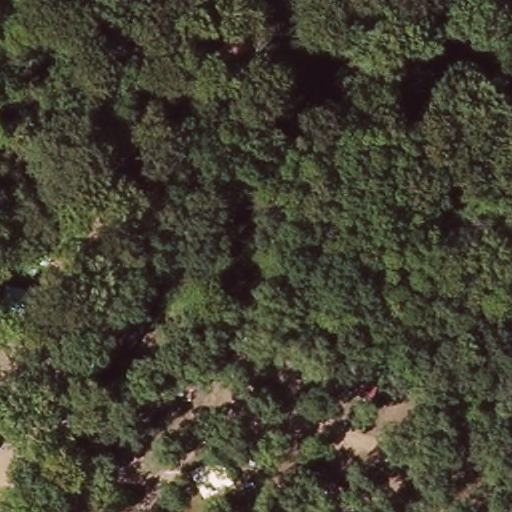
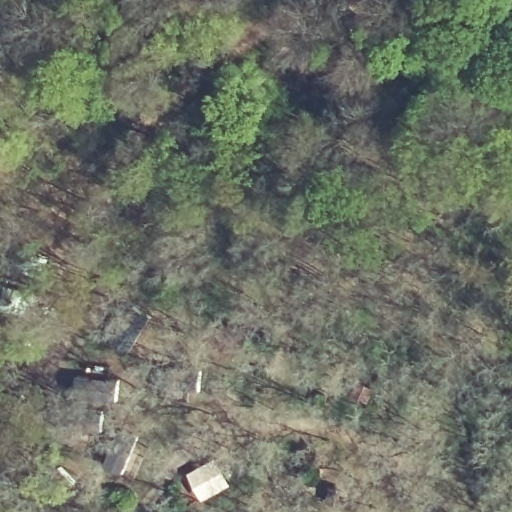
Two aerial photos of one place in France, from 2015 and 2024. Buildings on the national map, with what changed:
unchanged [(2,429),(0,432),(0,428),(2,429)]

